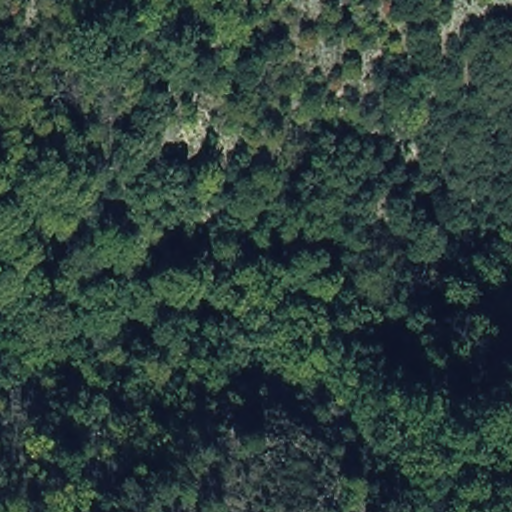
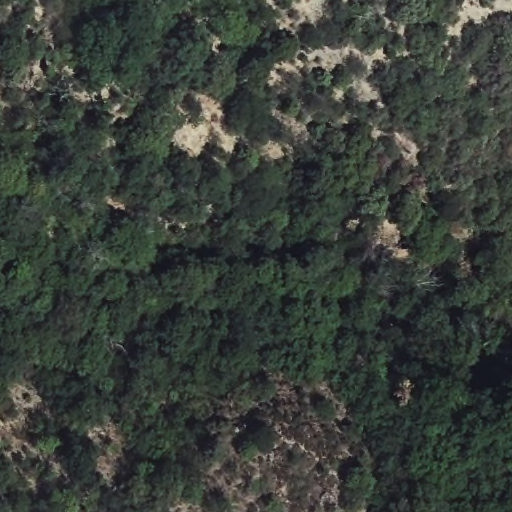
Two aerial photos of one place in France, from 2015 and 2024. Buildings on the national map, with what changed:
[]

